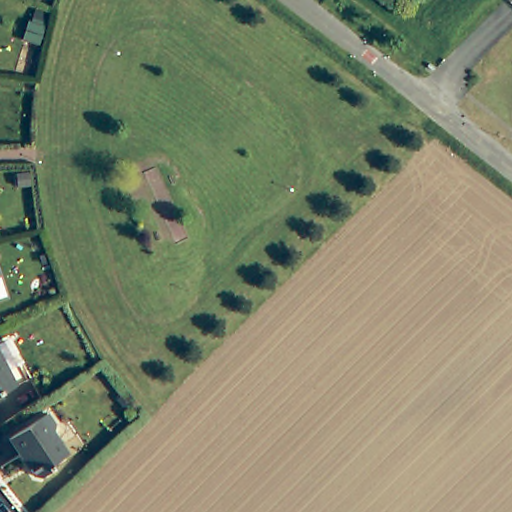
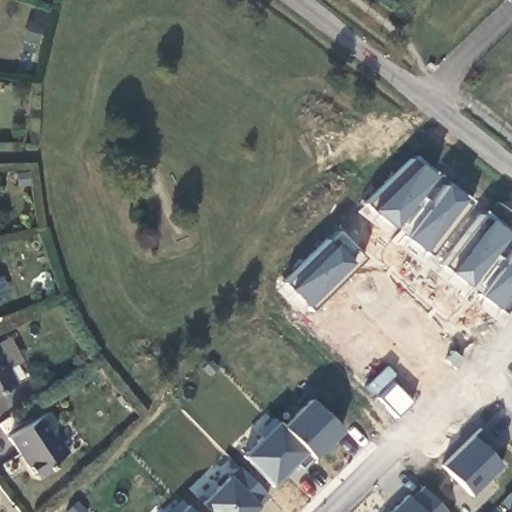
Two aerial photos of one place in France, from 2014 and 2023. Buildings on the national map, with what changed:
unchanged [(26,35),(31,17),(34,5),(47,9),(44,21),(39,39),(26,35)]
new [(410,158),(414,155),(435,172),(432,176),(392,227),(369,209),(364,203),(410,158)]
new [(404,236),(444,185),(447,181),(473,201),(469,205),(429,256),(404,236)]
new [(392,227),(418,194),(430,203),(404,236),(392,227)]
new [(441,265),(481,214),(484,210),(510,230),(507,234),(467,285),(441,265)]
new [(345,259),(355,249),(364,258),(301,319),(273,291),(326,239),(345,259)]
new [(478,294),(512,251),(512,302),(503,314),(478,294)]
new [(504,261),(478,294),(467,285),(492,252),(504,261)]
unchanged [(0,394),(0,352),(18,384),(0,394)]
new [(413,402),(396,417),(377,398),(394,382),(413,402)]
new [(341,430),(312,458),(282,427),(310,399),(341,430)]
unchanged [(46,413),(53,424),(49,426),(57,440),(65,452),(51,461),(54,466),(35,477),(28,467),(9,438),(46,413)]
new [(301,469),(294,462),(284,471),(286,473),(272,486),(241,456),(261,437),(257,433),(273,417),(312,458),(301,469)]
new [(490,439),(482,447),(500,465),(470,495),(441,465),(479,428),(490,439)]
new [(212,512),(202,502),(242,464),(271,495),(255,512),(212,512)]
new [(411,500),(424,487),(446,512),(392,512),(408,496),(411,500)]
new [(510,512),(511,511),(501,500),(512,489),(512,512),(510,512)]
new [(194,512),(166,512),(181,498),(194,512)]

